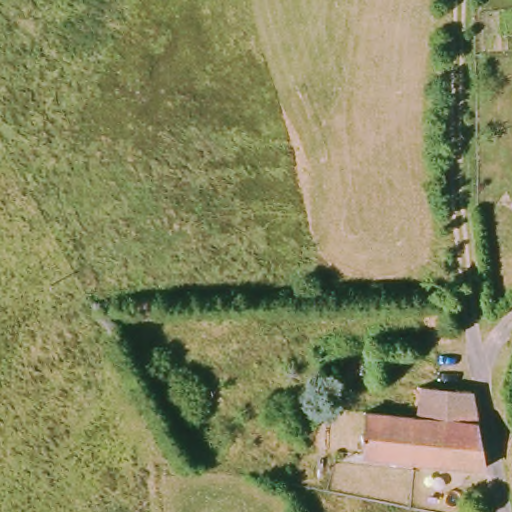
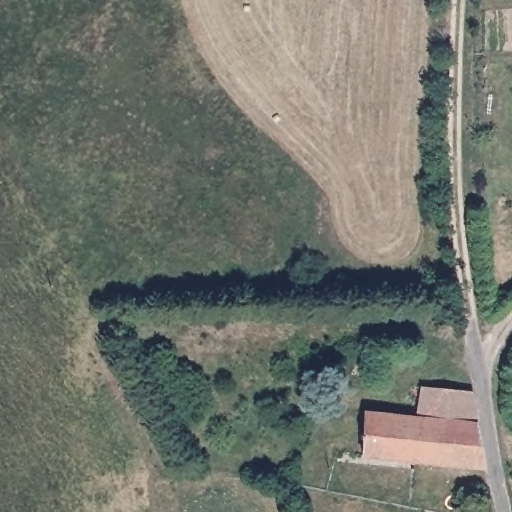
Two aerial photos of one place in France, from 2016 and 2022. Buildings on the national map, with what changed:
unchanged [(483,467),(362,455),(362,411),(415,417),(423,387),(470,391),(483,467)]

